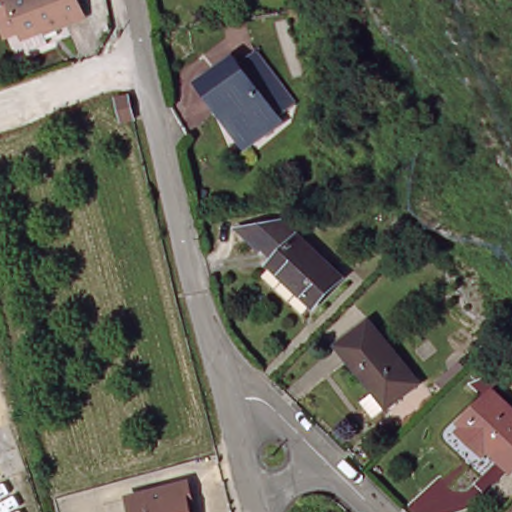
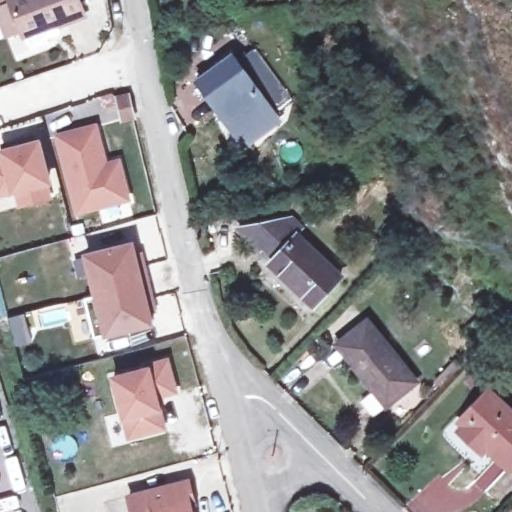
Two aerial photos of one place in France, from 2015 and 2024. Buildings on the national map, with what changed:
unchanged [(37,31),(20,38),(15,25),(12,26),(10,19),(0,23),(0,0),(73,0),(75,3),(57,10),(57,8),(41,14),(45,23),(36,26),(37,31)]
unchanged [(217,115),(197,87),(232,63),(272,120),(244,140),(222,111),(217,115)]
new [(127,204),(72,216),(53,135),(96,123),(106,161),(119,159),(127,204)]
new [(0,197),(0,160),(1,160),(0,158),(0,148),(39,140),(49,184),(10,195),(0,197)]
unchanged [(314,308),(272,271),(280,264),(269,255),(264,261),(241,240),(286,230),(340,280),(314,308)]
new [(92,312),(87,292),(149,275),(154,292),(147,293),(154,316),(109,328),(97,331),(92,312)]
new [(0,317),(0,286),(7,316),(0,317)]
unchanged [(385,405),(338,349),(368,324),(413,381),(385,405)]
new [(151,362),(150,359),(170,353),(178,384),(159,390),(167,421),(132,430),(117,371),(151,362)]
unchanged [(456,434),(475,412),(472,410),(470,407),(487,389),(512,412),(512,467),(486,444),(477,453),(456,434)]
unchanged [(131,499),(190,484),(196,504),(192,505),(193,512),(135,512),(131,499)]

